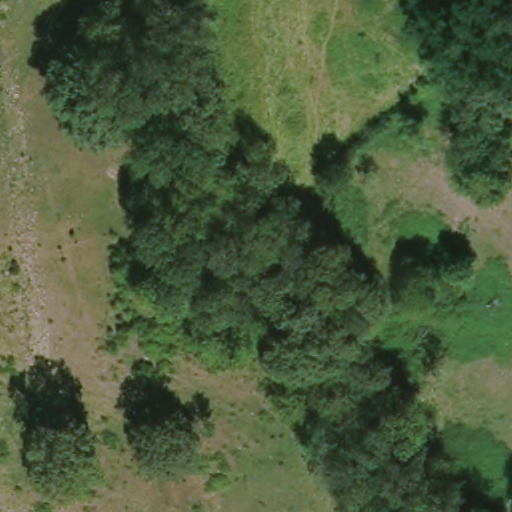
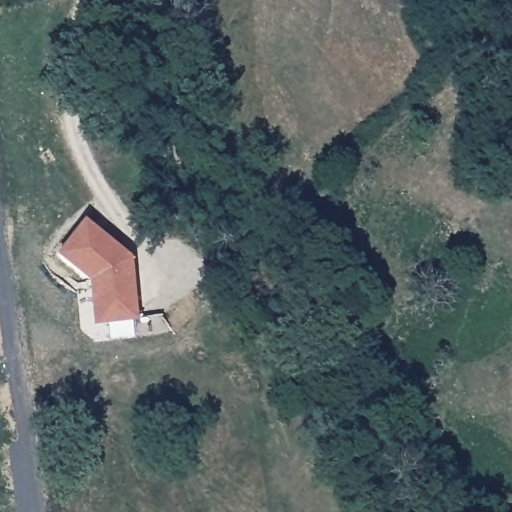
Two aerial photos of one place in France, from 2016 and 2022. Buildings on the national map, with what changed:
new [(131,259),(138,320),(96,324),(89,281),(57,255),(84,221),(131,259)]

